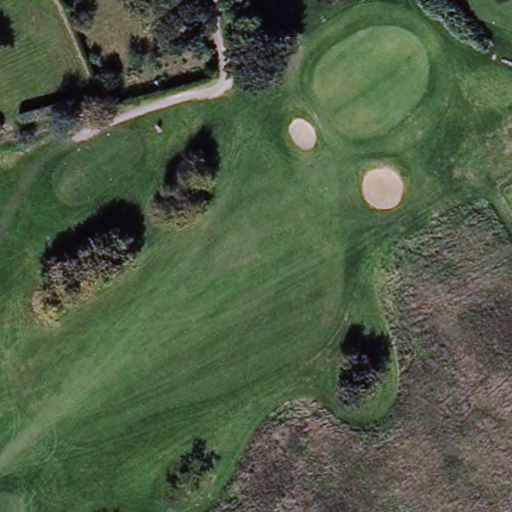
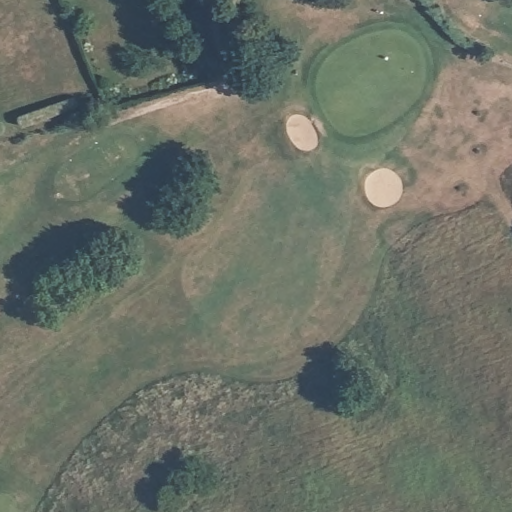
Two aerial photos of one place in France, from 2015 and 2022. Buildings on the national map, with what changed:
[]

